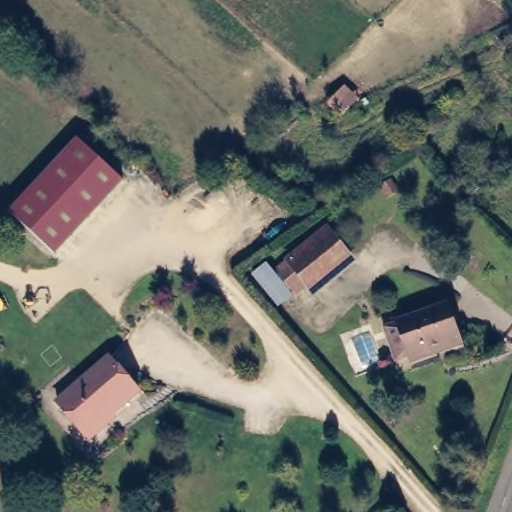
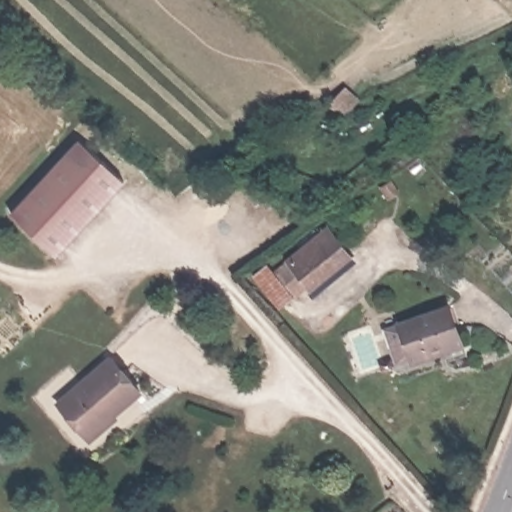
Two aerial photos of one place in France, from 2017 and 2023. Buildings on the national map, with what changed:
unchanged [(6,220),(77,136),(125,181),(48,261),(6,220)]
unchanged [(271,267),(326,230),(352,269),(300,303),(271,267)]
unchanged [(406,365),(403,357),(393,327),(444,306),(455,337),(458,345),(406,365)]
unchanged [(90,441),(85,434),(55,395),(116,357),(143,392),(116,411),(122,418),(90,441)]

